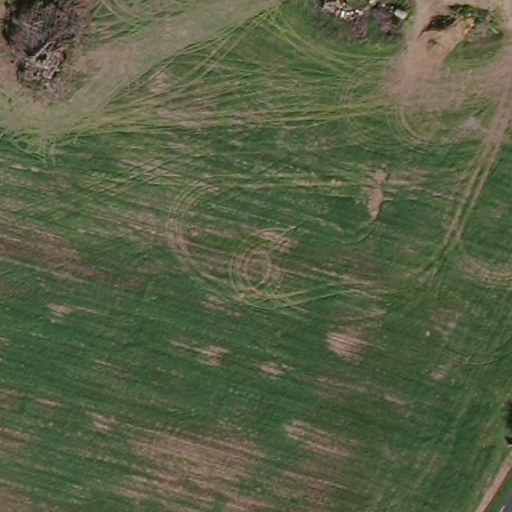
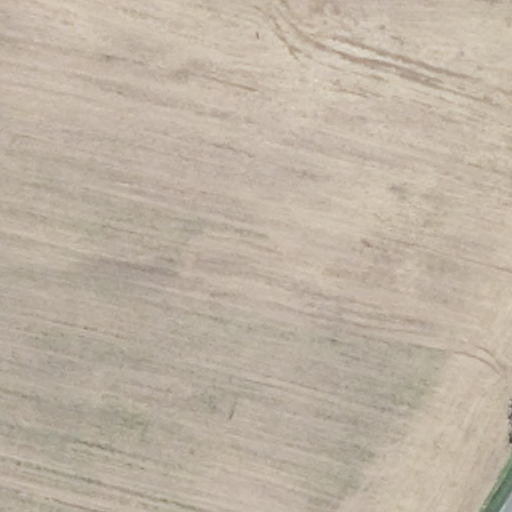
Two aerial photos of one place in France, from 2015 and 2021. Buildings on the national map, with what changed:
[]

